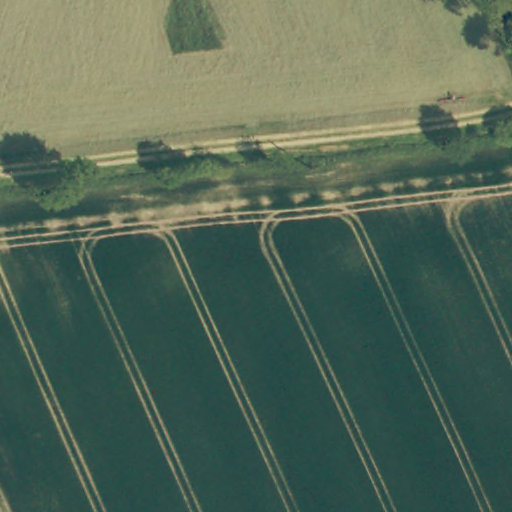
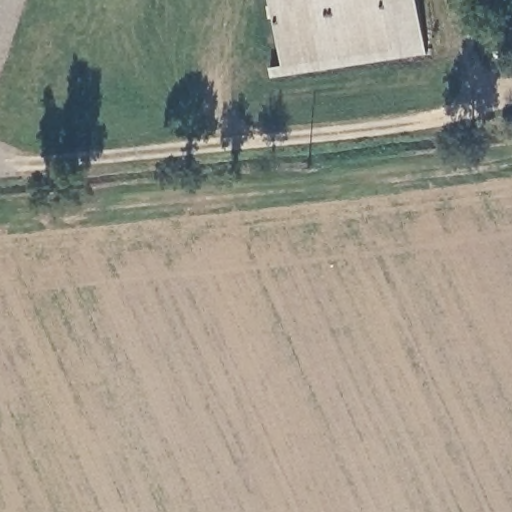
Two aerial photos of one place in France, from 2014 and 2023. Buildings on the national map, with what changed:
new [(269,67),(282,66),(272,0),(418,0),(426,55),(270,78),(269,67)]

